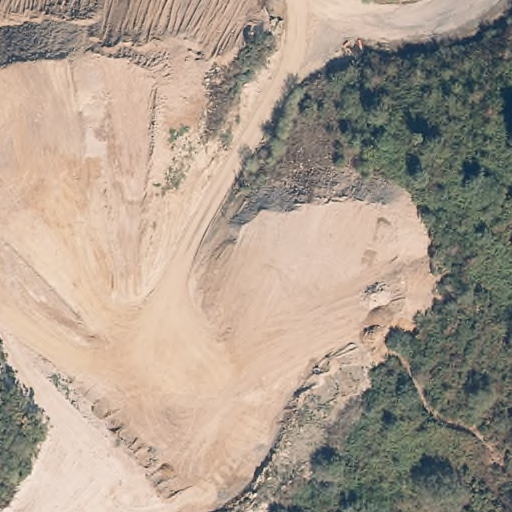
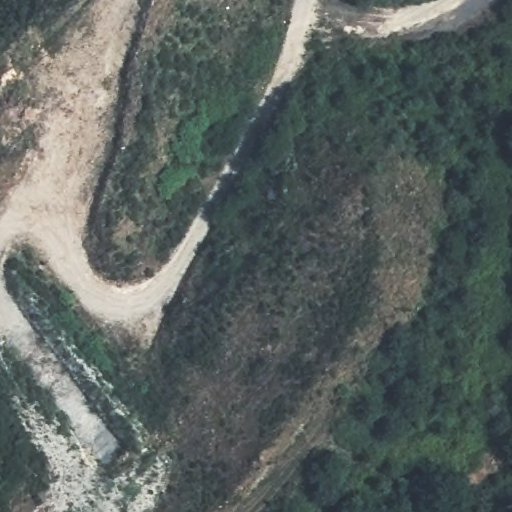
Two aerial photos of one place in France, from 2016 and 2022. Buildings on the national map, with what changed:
[]

